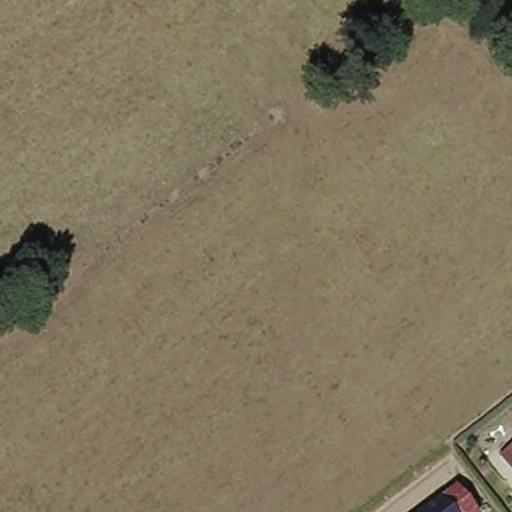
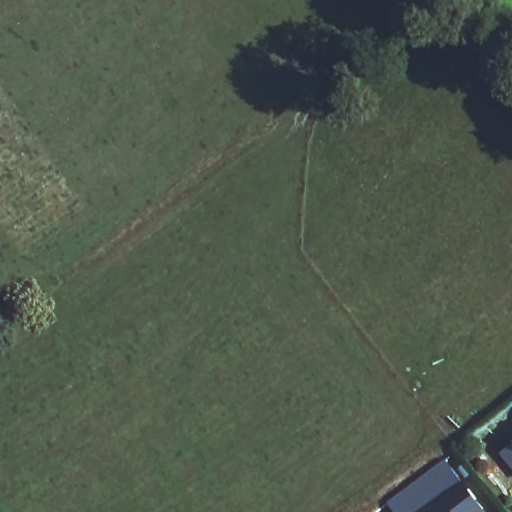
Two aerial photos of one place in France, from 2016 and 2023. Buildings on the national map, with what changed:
unchanged [(507,455),(512,450),(512,461),(507,455)]
new [(485,508),(481,512),(451,512),(442,499),(424,512),(395,512),(387,502),(444,458),(462,480),(485,508)]
unchanged [(451,512),(424,512),(442,499),(451,512)]

